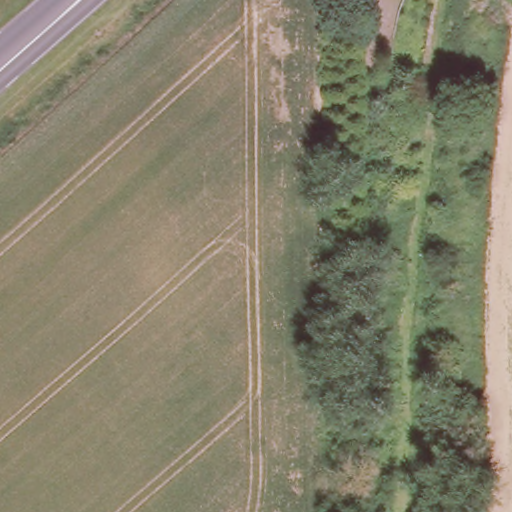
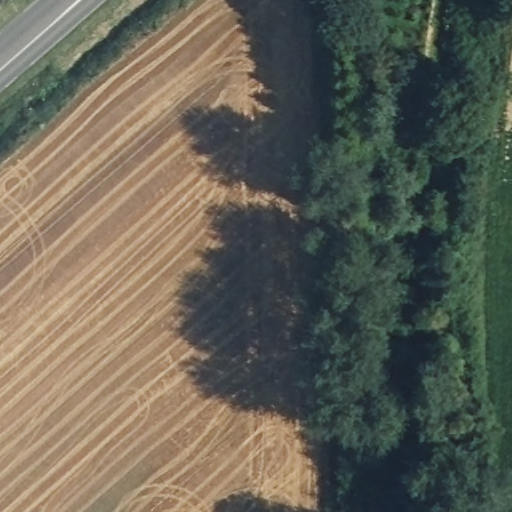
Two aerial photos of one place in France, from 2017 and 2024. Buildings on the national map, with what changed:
unchanged [(395,162),(375,162),(375,126),(395,124),(395,162)]

